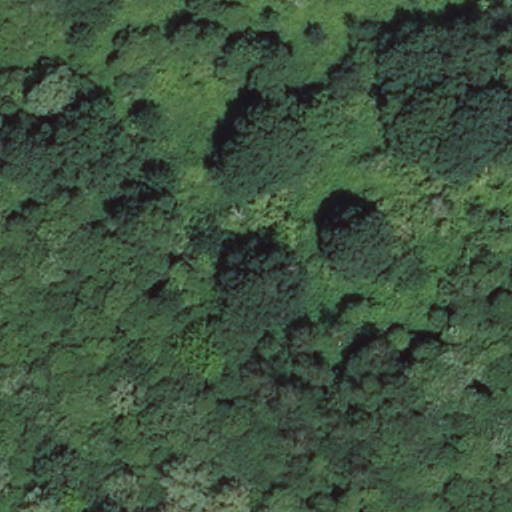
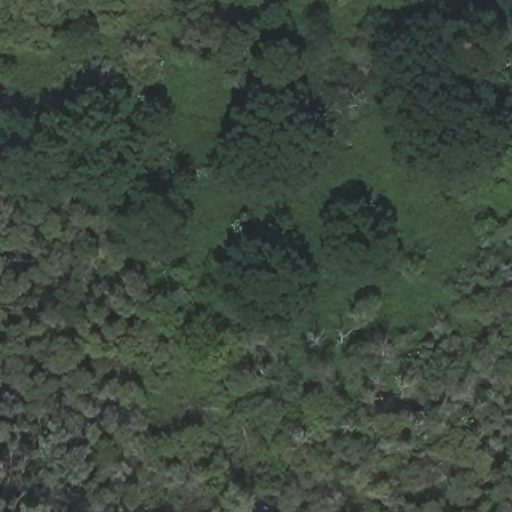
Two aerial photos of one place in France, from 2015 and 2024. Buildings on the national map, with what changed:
[]

